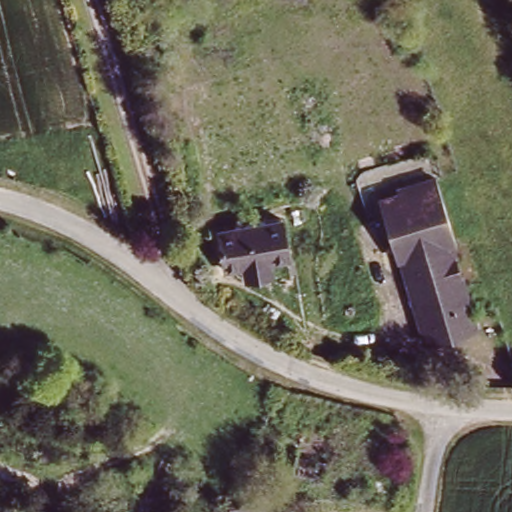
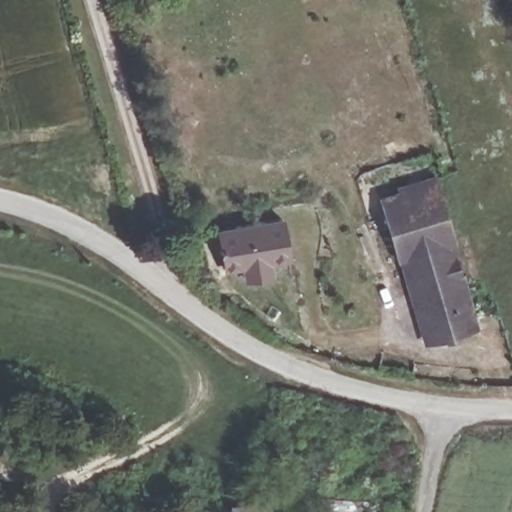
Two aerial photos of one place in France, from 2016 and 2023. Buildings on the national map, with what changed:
unchanged [(400,257),(393,259),(376,197),(434,181),(453,241),(448,243),(473,330),(426,343),(400,257)]
unchanged [(245,276),(243,259),(225,261),(218,227),(283,217),(289,252),(269,255),(272,272),(245,276)]
unchanged [(301,431),(328,436),(320,477),(292,471),(301,431)]
unchanged [(269,503),(269,512),(226,512),(226,503),(269,503)]

